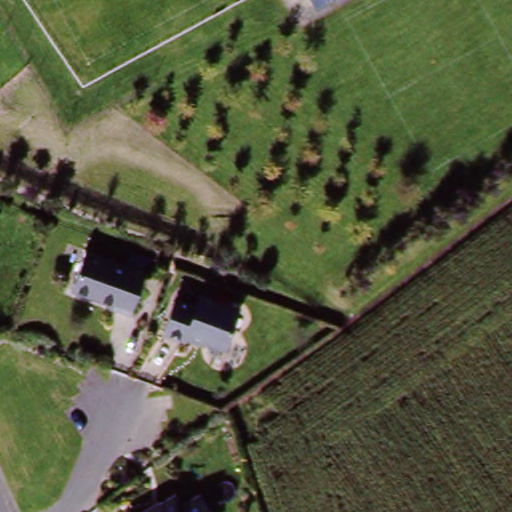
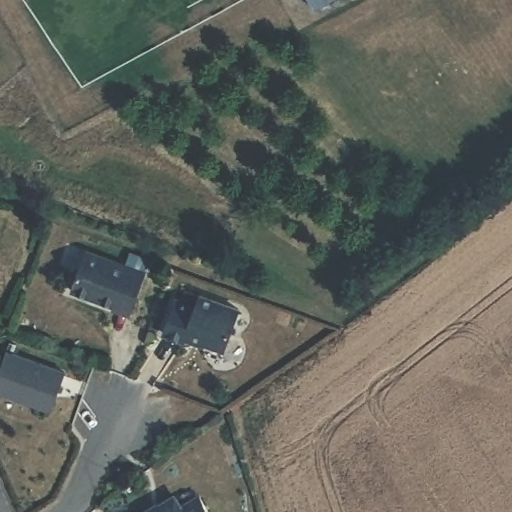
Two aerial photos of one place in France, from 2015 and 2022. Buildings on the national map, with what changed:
unchanged [(310,1),(310,0),(313,0),(310,1)]
unchanged [(337,11),(332,0),(363,0),(337,11)]
unchanged [(115,312),(114,308),(73,294),(88,254),(127,268),(133,253),(152,260),(147,275),(132,316),(115,312)]
unchanged [(238,313),(222,353),(185,338),(183,343),(165,336),(177,302),(197,310),(201,298),(238,313)]
new [(10,349),(67,372),(52,409),(0,388),(0,375),(10,349)]
unchanged [(183,509),(196,500),(203,512),(155,512),(175,500),(183,509)]
unchanged [(146,512),(151,509),(154,512),(146,512)]

